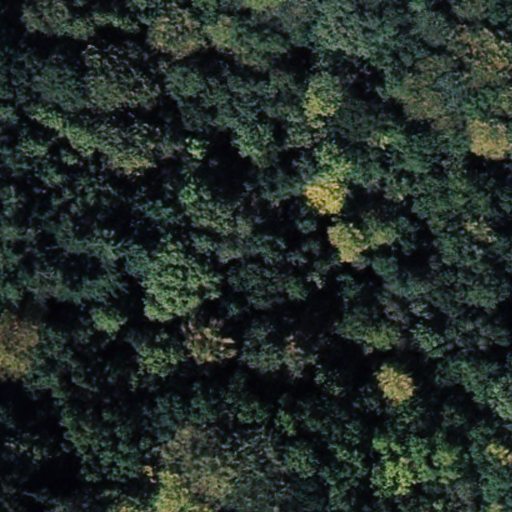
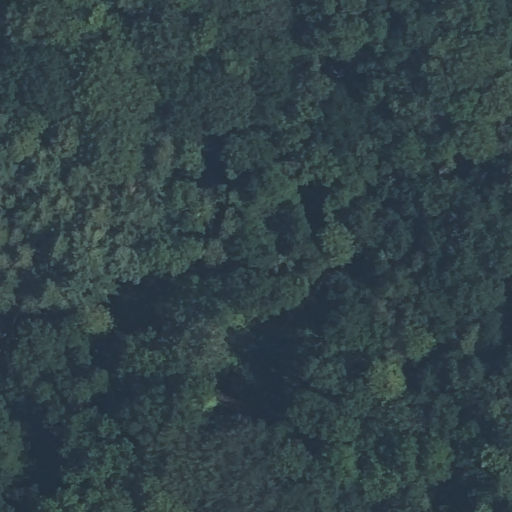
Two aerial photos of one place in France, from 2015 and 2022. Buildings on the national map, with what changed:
[]

